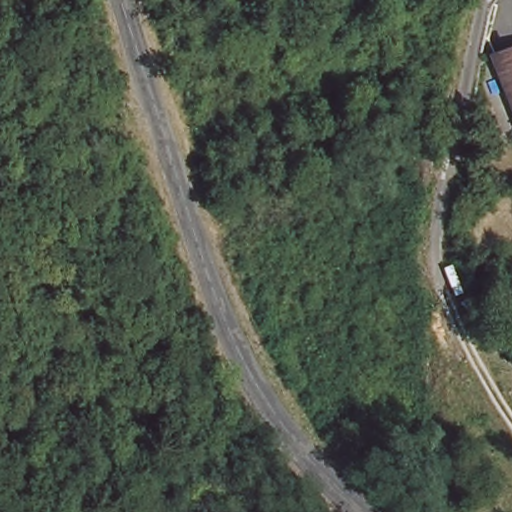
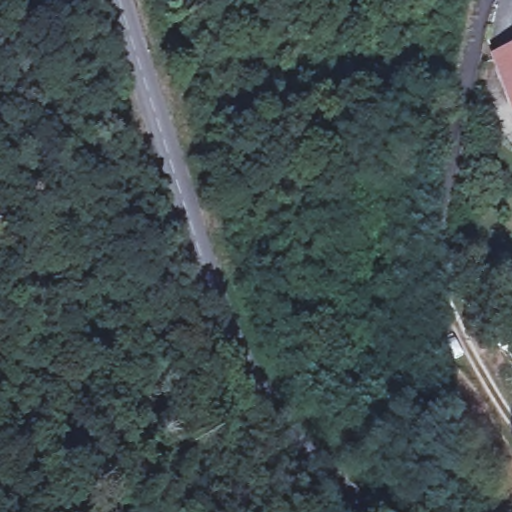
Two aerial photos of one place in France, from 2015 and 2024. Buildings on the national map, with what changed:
unchanged [(498,59),(512,54),(512,97),(498,59)]

